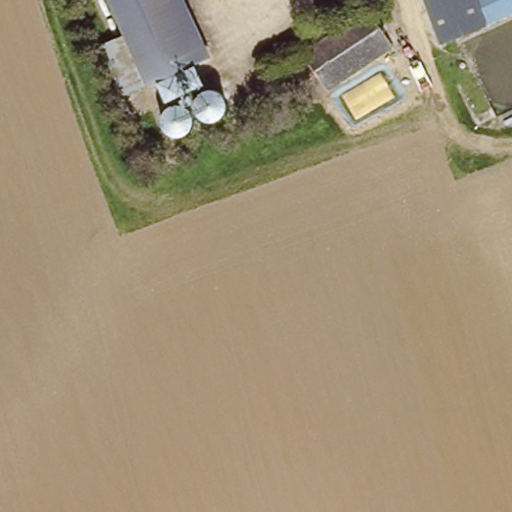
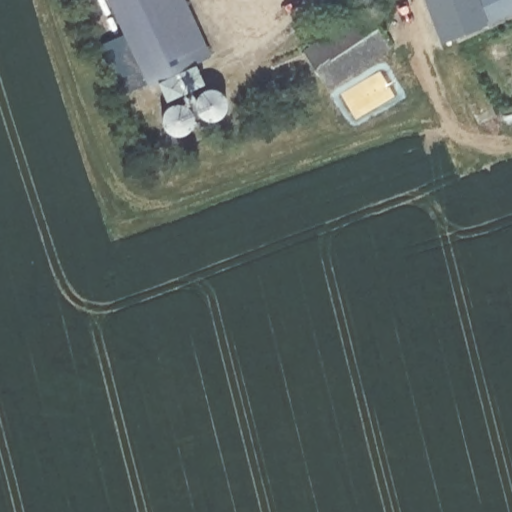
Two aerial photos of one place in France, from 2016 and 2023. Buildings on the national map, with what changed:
unchanged [(162,104),(149,83),(124,95),(99,49),(116,39),(101,0),(187,0),(212,54),(196,62),(205,85),(162,104)]
unchanged [(487,24),(440,42),(423,0),(478,0),(487,24)]
unchanged [(478,0),(512,0),(512,14),(487,24),(478,0)]
unchanged [(294,51),(354,20),(350,12),(367,4),(391,49),(314,90),(294,51)]
unchanged [(212,88),(221,91),(225,97),(228,106),(227,112),(223,117),(185,135),(175,135),(167,134),(162,126),(162,117),(165,109),(170,104),(205,90),(212,88)]

